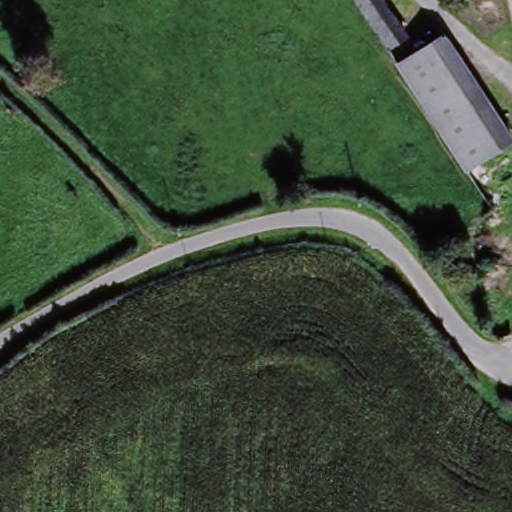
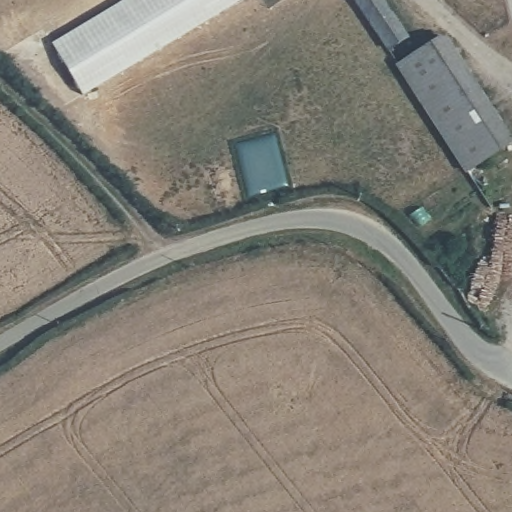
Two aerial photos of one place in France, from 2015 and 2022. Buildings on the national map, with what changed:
new [(52,44),(125,0),(245,0),(83,96),(52,44)]
unchanged [(389,52),(354,0),(379,0),(405,41),(389,52)]
unchanged [(443,41),(508,145),(463,175),(398,71),(443,41)]

